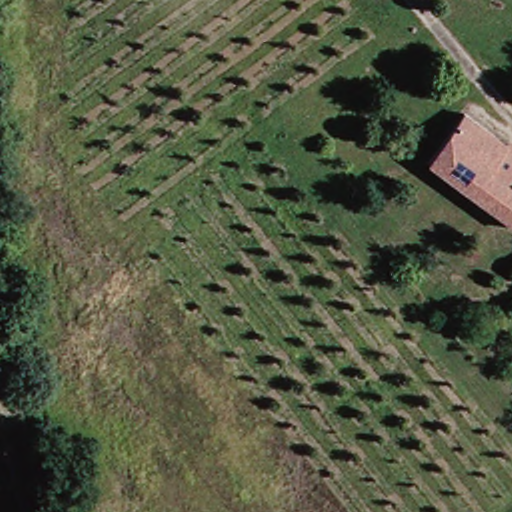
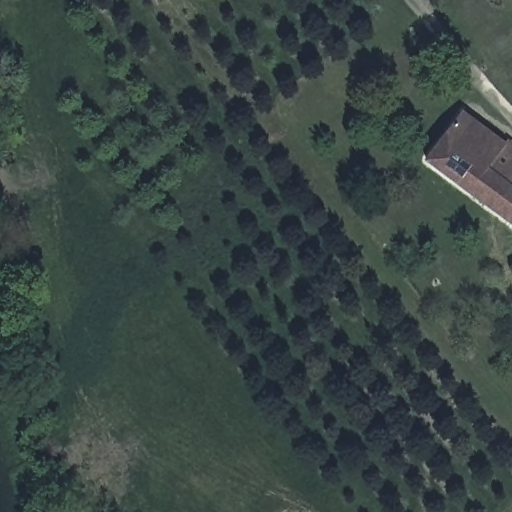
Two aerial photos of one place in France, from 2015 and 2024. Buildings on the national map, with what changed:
unchanged [(509,232),(418,162),(442,131),(457,113),(503,149),(512,155),(512,228),(509,232)]
unchanged [(407,190),(417,196),(392,226),(383,218),(407,190)]

